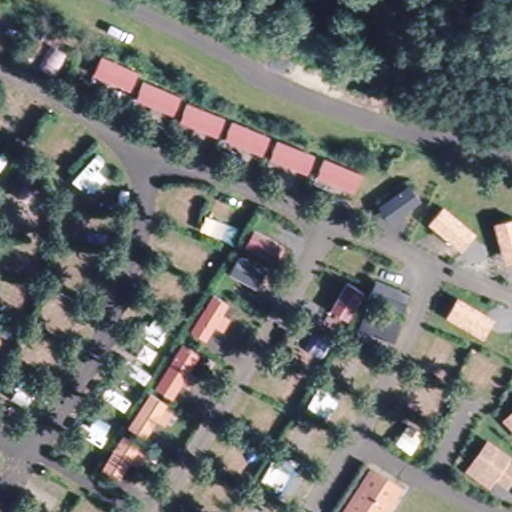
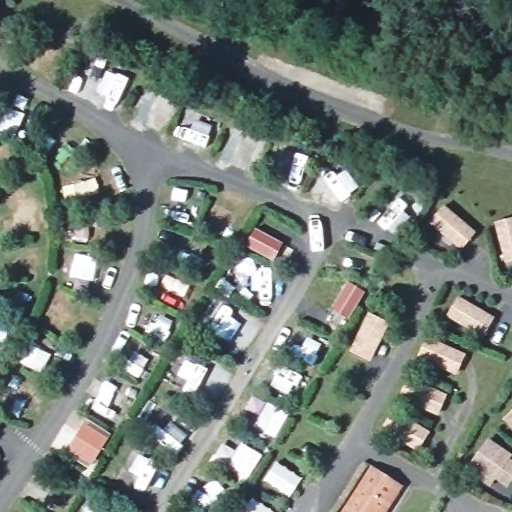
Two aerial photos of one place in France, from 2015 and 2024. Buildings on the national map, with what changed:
unchanged [(401,488),(387,512),(337,512),(371,464),(401,488)]

